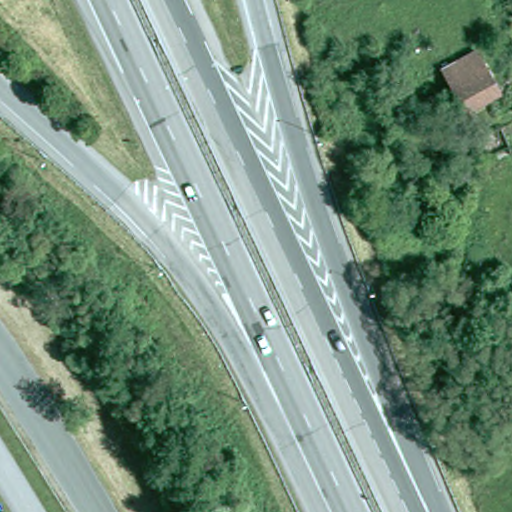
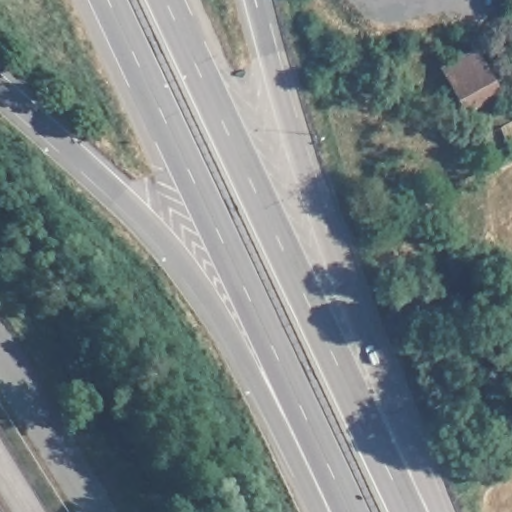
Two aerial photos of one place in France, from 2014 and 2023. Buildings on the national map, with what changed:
unchanged [(448,85),(482,67),(494,89),(460,108),(448,85)]

